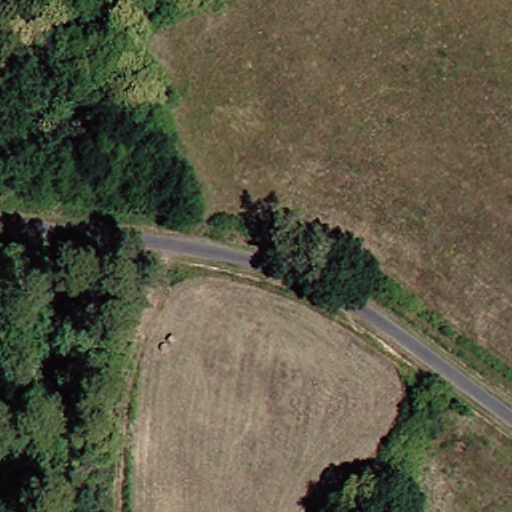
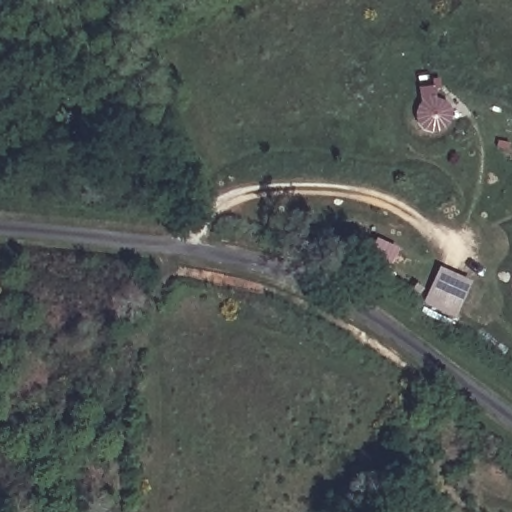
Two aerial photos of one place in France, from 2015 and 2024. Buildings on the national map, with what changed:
new [(440,266),(473,281),(456,319),(422,303),(440,266)]

